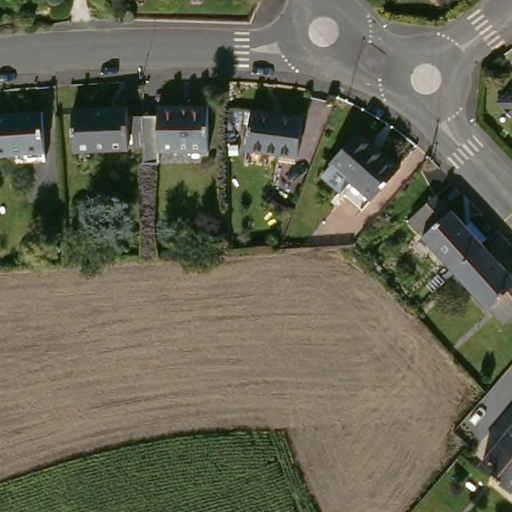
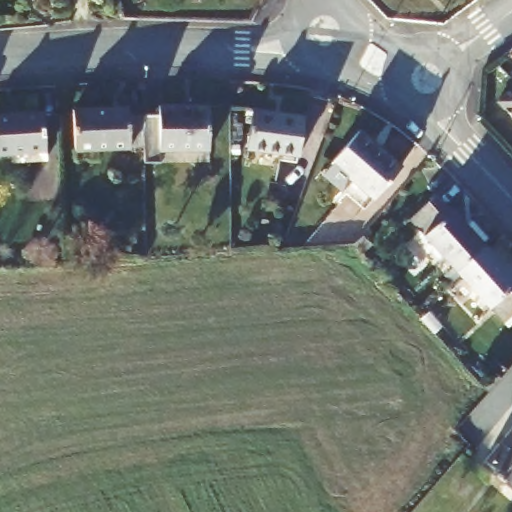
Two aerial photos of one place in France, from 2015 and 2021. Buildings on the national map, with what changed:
unchanged [(512,94),(512,105),(506,99),(512,94)]
unchanged [(255,148),(262,102),(312,110),(305,156),(255,148)]
unchanged [(79,148),(80,104),(132,105),(132,111),(150,112),(149,150),(79,148)]
unchanged [(169,113),(169,104),(211,105),(210,151),(164,150),(164,165),(149,164),(149,150),(150,112),(169,113)]
unchanged [(11,155),(0,155),(0,114),(51,114),(51,155),(11,155)]
unchanged [(367,127),(410,165),(382,198),(371,208),(328,171),(339,160),(367,127)]
unchanged [(406,216),(432,192),(448,210),(453,206),(487,243),(456,271),(406,216)]
unchanged [(487,243),(512,270),(512,321),(507,326),(456,271),(487,243)]
unchanged [(512,483),(488,463),(512,435),(512,483)]

